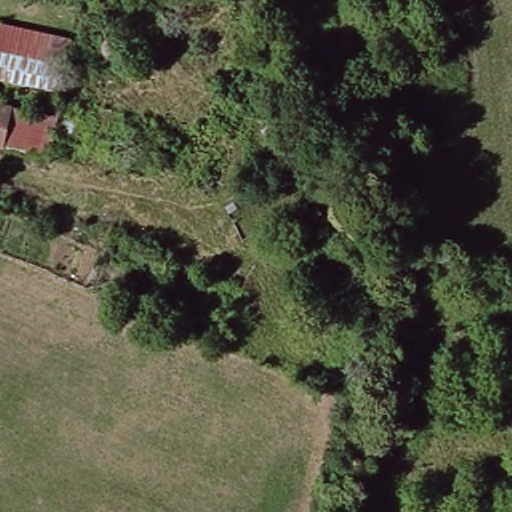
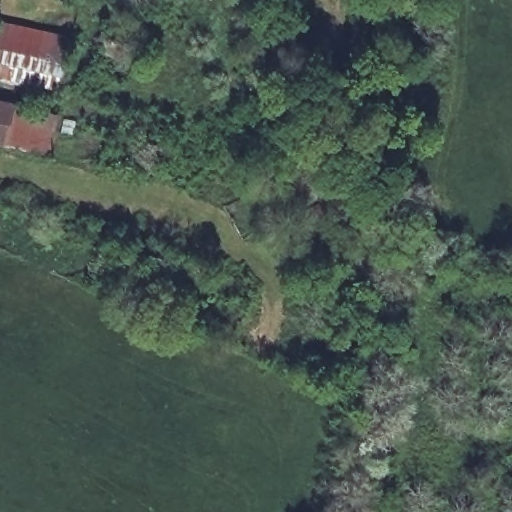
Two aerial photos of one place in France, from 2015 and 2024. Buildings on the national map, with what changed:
unchanged [(70,43),(63,71),(0,57),(0,26),(70,43)]
unchanged [(63,71),(59,93),(0,79),(0,57),(63,71)]
unchanged [(3,148),(0,147),(0,103),(13,106),(57,116),(49,159),(3,148)]
unchanged [(88,284),(102,250),(157,273),(145,306),(88,284)]
unchanged [(387,387),(382,384),(378,379),(386,364),(394,364),(399,367),(402,373),(402,379),(398,384),(393,387),(387,387)]

